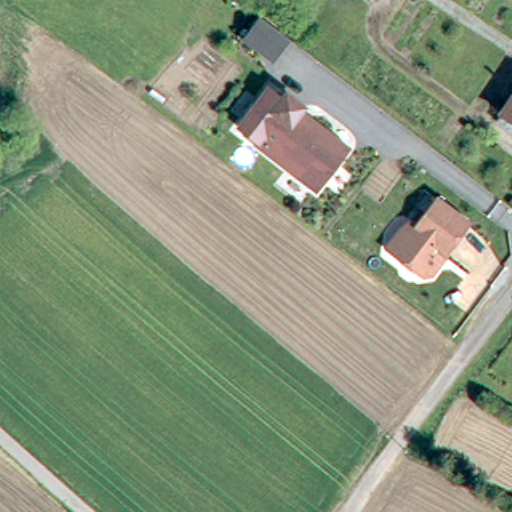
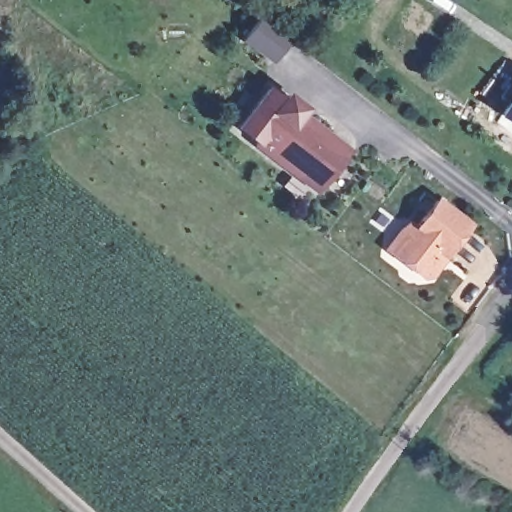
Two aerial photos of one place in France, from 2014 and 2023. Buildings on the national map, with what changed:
unchanged [(234,130),(267,84),(279,94),(283,90),(308,106),(303,114),(351,151),(316,199),(234,130)]
unchanged [(507,98),(512,91),(512,102),(507,98)]
unchanged [(507,116),(512,108),(512,120),(507,116)]
unchanged [(404,225),(412,231),(419,221),(423,222),(435,206),(466,229),(437,266),(398,233),(404,225)]
unchanged [(417,279),(392,261),(382,254),(391,242),(398,233),(437,266),(428,279),(417,279)]

